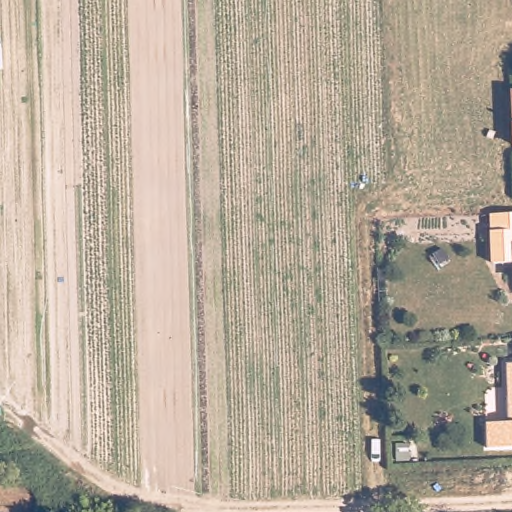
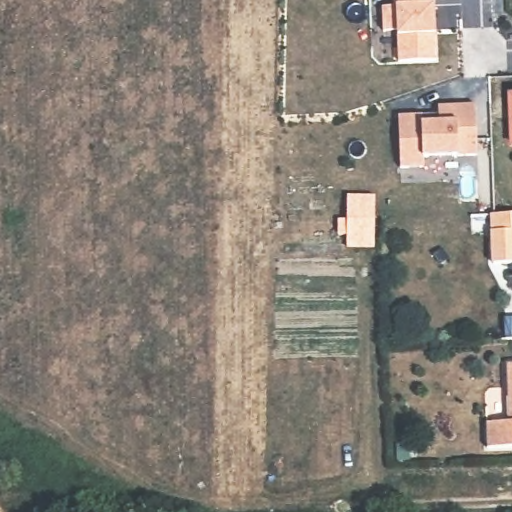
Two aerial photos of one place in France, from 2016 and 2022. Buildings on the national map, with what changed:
new [(389,0),(424,0),(424,4),(429,4),(432,60),(394,61),(393,30),(379,30),(378,6),(389,5),(389,0)]
unchanged [(512,95),(512,149),(511,149),(508,95),(512,95)]
new [(422,115),(422,122),(438,121),(438,105),(475,104),(477,155),(423,156),(424,166),(399,167),(398,115),(422,115)]
unchanged [(494,261),(491,229),(490,212),(493,212),(512,211),(512,260),(494,261)]
unchanged [(489,447),(487,422),(509,420),(508,391),(506,362),(512,362),(512,446),(489,447)]

